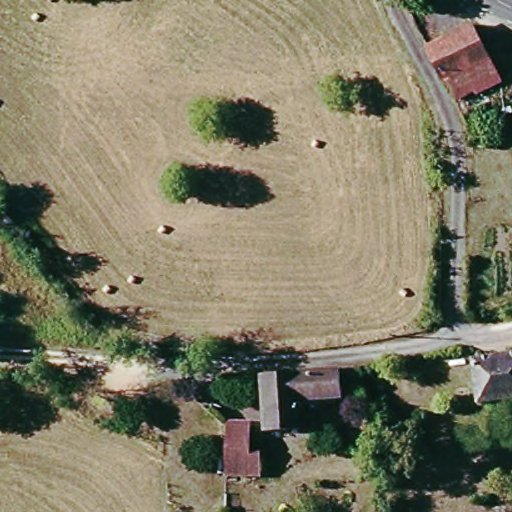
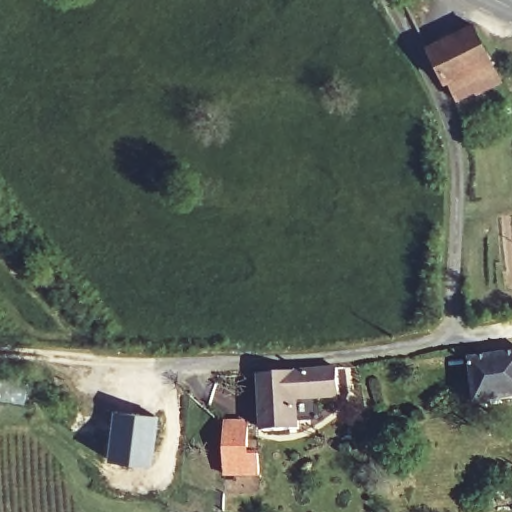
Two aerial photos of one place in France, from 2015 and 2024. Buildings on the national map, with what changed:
unchanged [(456,76),(438,84),(420,48),(468,30),(493,85),(465,96),(456,76)]
unchanged [(465,363),(512,355),(512,392),(472,399),(465,363)]
unchanged [(334,391),(297,398),(298,424),(265,426),(257,383),(331,368),(334,391)]
new [(112,410),(157,415),(152,465),(106,459),(112,410)]
unchanged [(250,470),(216,469),(219,429),(253,430),(250,470)]

